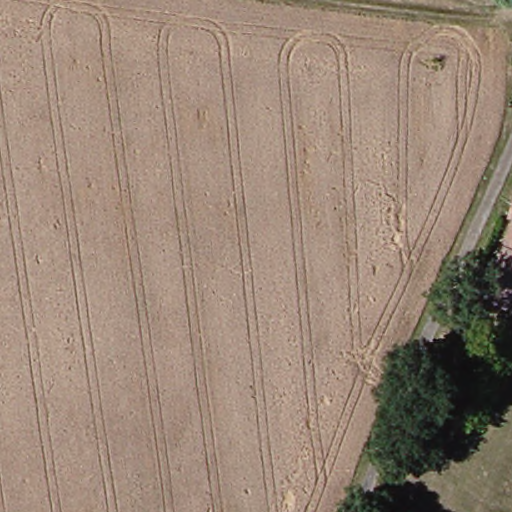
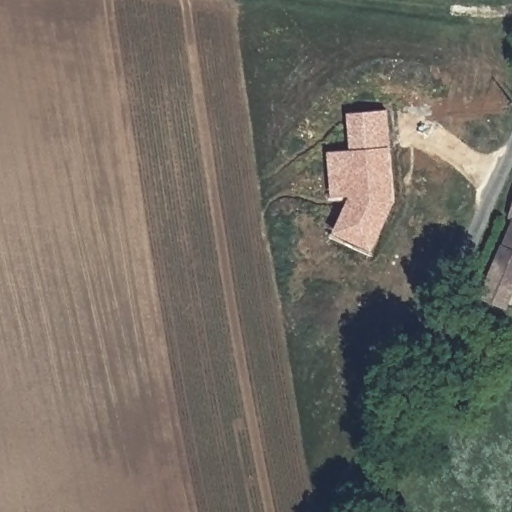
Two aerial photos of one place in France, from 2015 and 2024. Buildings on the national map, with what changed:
new [(395,205),(373,251),(334,234),(350,197),(331,197),(328,152),(350,150),(347,112),(389,110),(395,205)]
unchanged [(499,278),(512,246),(512,284),(499,278)]

